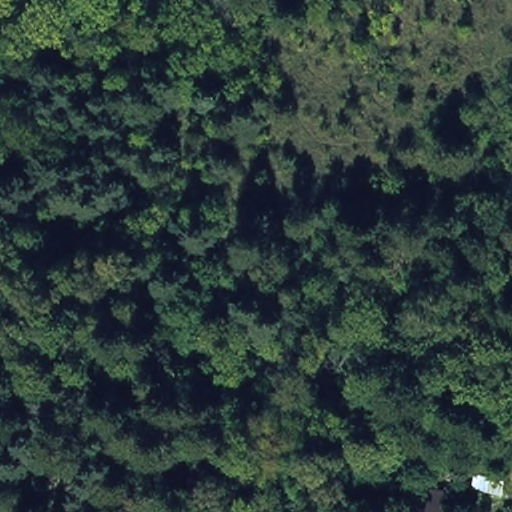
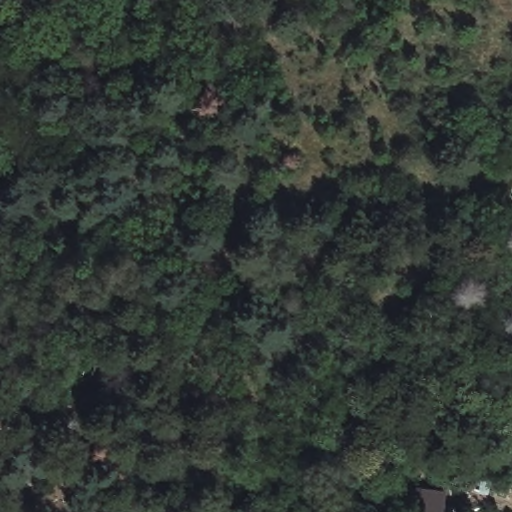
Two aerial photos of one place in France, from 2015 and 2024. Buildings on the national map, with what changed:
unchanged [(441,490),(439,512),(403,512),(407,488),(441,490)]

